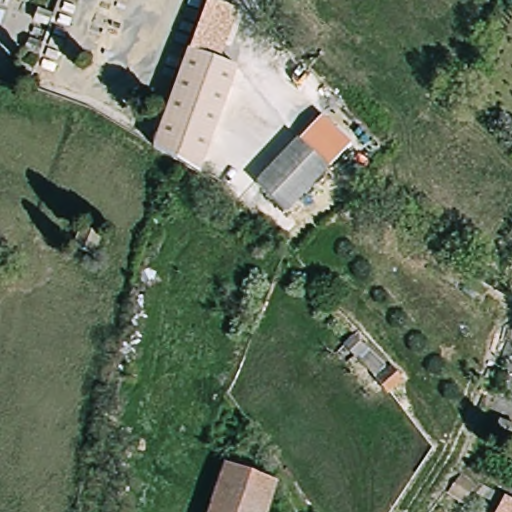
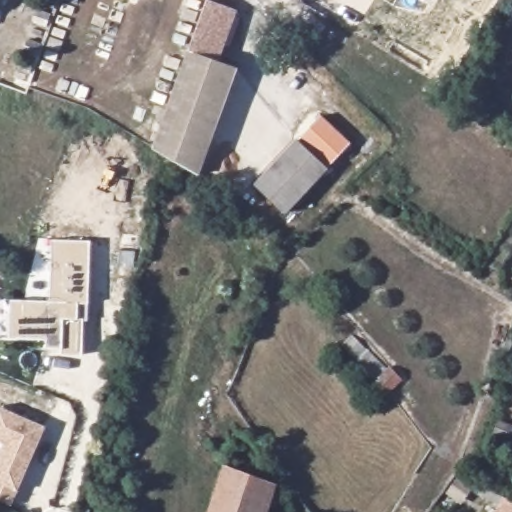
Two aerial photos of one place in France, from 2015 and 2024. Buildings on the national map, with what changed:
unchanged [(204,0),(216,0),(235,6),(217,58),(236,65),(198,178),(162,157),(152,152),(175,86),(204,0)]
unchanged [(320,115),(350,143),(330,166),(298,138),(320,115)]
unchanged [(330,166),(286,214),(255,187),(298,138),(330,166)]
demolished [(71,249),(77,228),(98,234),(92,255),(71,249)]
new [(61,349),(45,349),(46,340),(10,339),(11,300),(50,301),(52,239),(91,241),(88,303),(87,321),(83,321),(81,355),(61,354),(61,349)]
unchanged [(369,348),(396,371),(404,380),(391,391),(389,393),(345,345),(355,336),(369,348)]
new [(3,442),(0,440),(0,407),(43,426),(9,504),(0,501),(0,450),(3,442)]
demolished [(511,425),(512,426),(512,442),(508,440),(511,425)]
unchanged [(272,481),(262,512),(208,512),(223,464),(272,481)]
unchanged [(512,512),(493,512),(500,497),(512,504),(512,512)]

